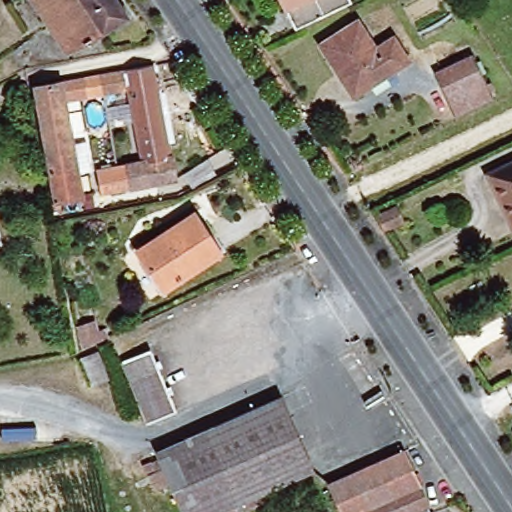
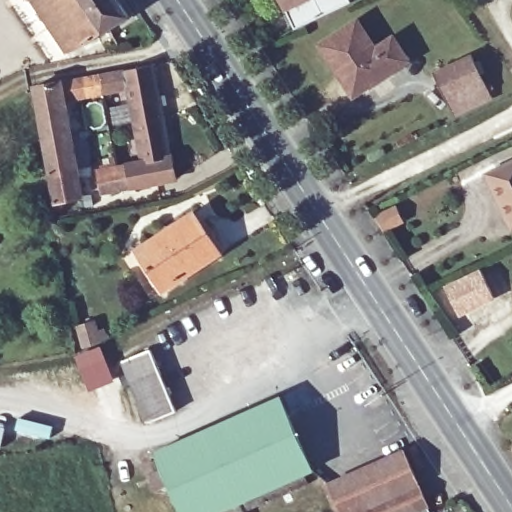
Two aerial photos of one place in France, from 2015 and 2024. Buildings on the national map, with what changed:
unchanged [(127,14),(79,46),(66,51),(31,0),(118,0),(127,14)]
unchanged [(295,25),(283,0),(349,0),(295,25)]
unchanged [(371,49),(387,38),(402,61),(350,95),(317,45),(354,22),(371,49)]
unchanged [(470,55),(489,94),(454,110),(435,71),(470,55)]
unchanged [(101,173),(119,169),(128,167),(144,165),(130,91),(105,96),(89,99),(86,81),(101,78),(156,67),(177,181),(134,190),(106,196),(101,173)]
unchanged [(57,80),(80,195),(52,199),(32,86),(57,80)]
unchanged [(512,158),(512,225),(485,170),(512,158)]
unchanged [(395,206),(402,220),(386,227),(378,213),(395,206)]
unchanged [(191,211),(217,252),(161,289),(135,248),(191,211)]
new [(480,267),(493,296),(458,313),(444,284),(480,267)]
unchanged [(82,346),(74,325),(91,320),(95,330),(102,327),(105,336),(82,346)]
unchanged [(176,408),(148,421),(121,360),(149,347),(176,408)]
unchanged [(311,474),(222,512),(182,512),(157,454),(278,401),(311,474)]
unchanged [(401,449),(417,483),(360,509),(354,512),(340,512),(326,483),(401,449)]
unchanged [(361,512),(360,509),(417,483),(429,512),(361,512)]

